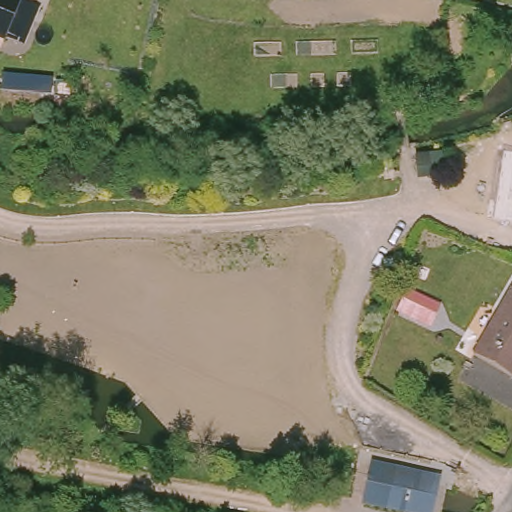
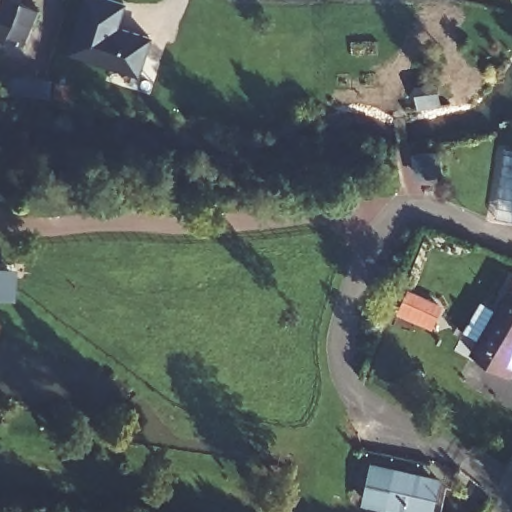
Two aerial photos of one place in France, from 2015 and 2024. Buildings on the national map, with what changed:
unchanged [(4,39),(0,37),(0,0),(20,0),(4,39)]
new [(65,51),(82,0),(124,0),(116,24),(110,46),(121,49),(116,67),(65,51)]
new [(116,67),(121,49),(110,46),(116,24),(152,35),(140,74),(116,67)]
new [(0,299),(0,265),(18,266),(16,300),(0,299)]
unchanged [(512,377),(472,353),(510,288),(512,290),(512,376),(512,377)]
unchanged [(399,307),(407,293),(433,306),(425,320),(399,307)]
unchanged [(441,476),(433,512),(407,512),(364,504),(372,464),(441,476)]

